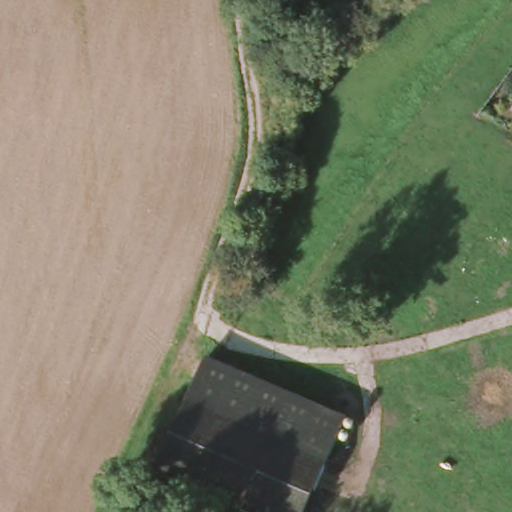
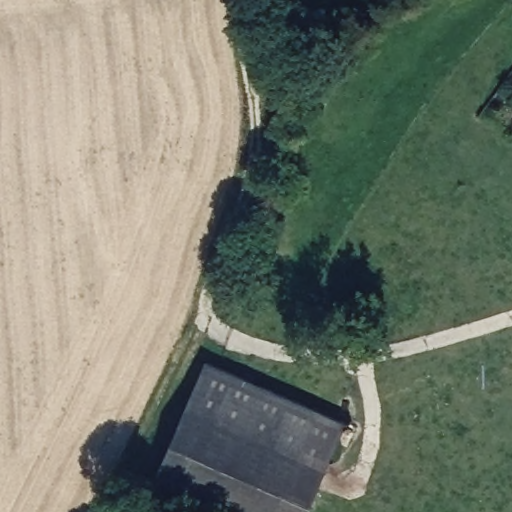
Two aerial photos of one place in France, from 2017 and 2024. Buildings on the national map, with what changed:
unchanged [(315,512),(223,512),(151,479),(211,358),(359,418),(315,512)]

